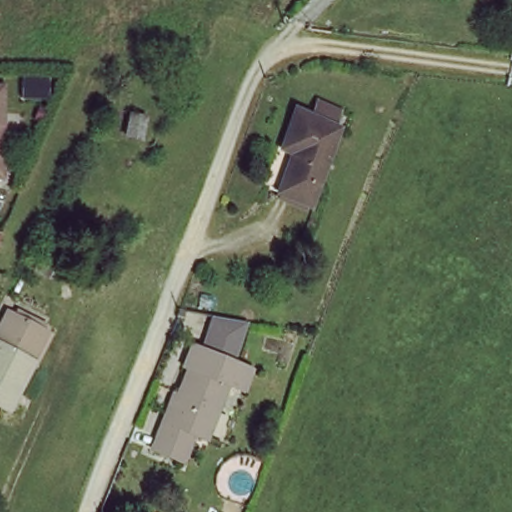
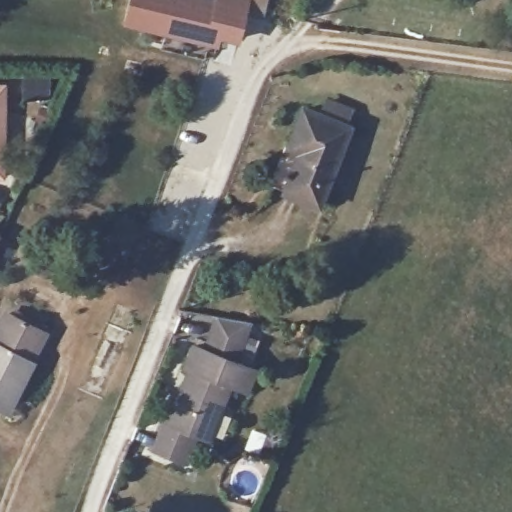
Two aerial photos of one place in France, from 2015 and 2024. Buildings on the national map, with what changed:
new [(122,25),(128,0),(250,0),(240,42),(220,37),(218,46),(122,25)]
unchanged [(0,82),(2,82),(0,155),(0,82)]
unchanged [(309,159),(297,154),(313,114),(355,130),(325,208),(292,196),(309,159)]
unchanged [(47,330),(7,412),(0,408),(0,332),(10,312),(42,327),(47,330)]
unchanged [(247,326),(244,344),(209,338),(211,321),(247,326)]
unchanged [(180,403),(191,375),(187,373),(194,353),(255,377),(248,397),(228,389),(206,443),(197,440),(185,468),(150,453),(161,425),(172,400),(180,403)]

